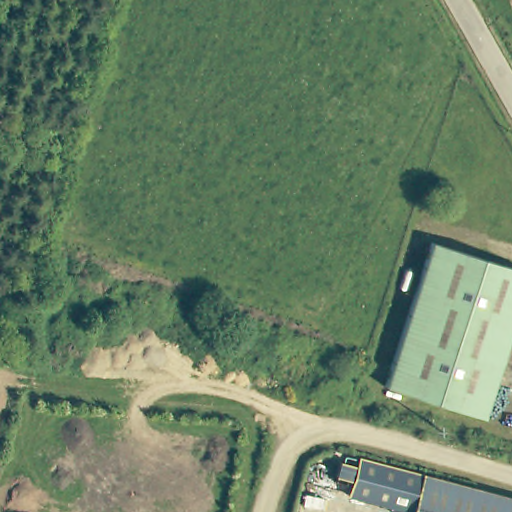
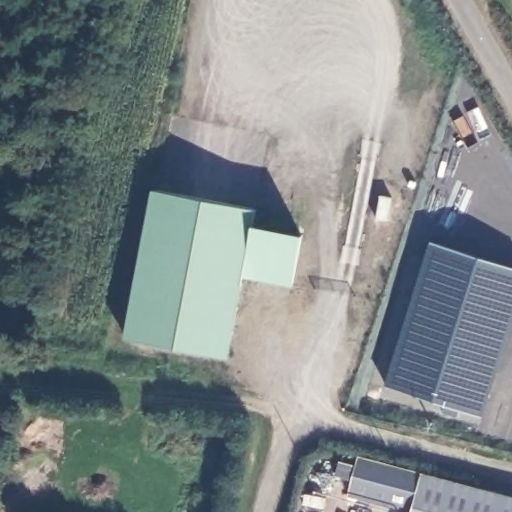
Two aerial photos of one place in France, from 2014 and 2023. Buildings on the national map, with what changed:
new [(122,339),(152,189),(255,209),(252,226),(304,236),(293,288),(243,278),(228,359),(122,339)]
unchanged [(385,382),(427,242),(512,267),(512,315),(481,414),(385,382)]
unchanged [(413,511),(354,496),(362,462),(394,470),(512,500),(512,512),(413,512),(413,511)]

